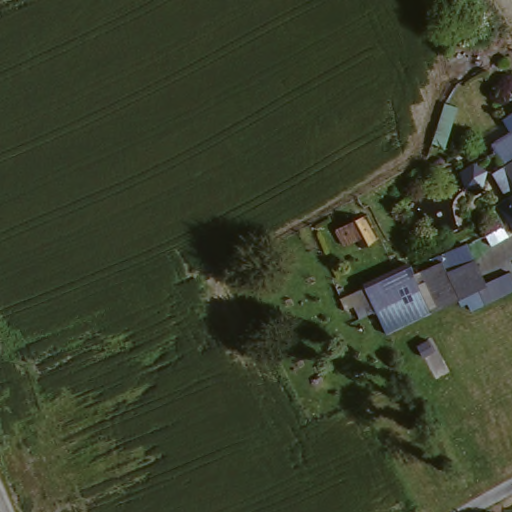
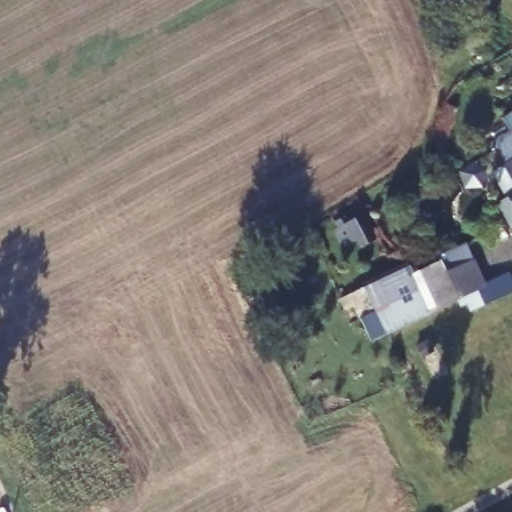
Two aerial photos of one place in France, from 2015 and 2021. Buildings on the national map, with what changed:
unchanged [(511,190),(497,164),(508,157),(497,136),(512,129),(512,217),(500,196),(511,190)]
unchanged [(481,307),(473,291),(401,320),(390,297),(376,305),(369,291),(361,296),(356,285),(380,273),(428,253),(432,263),(459,251),(466,267),(487,258),(497,281),(504,298),(481,307)]

